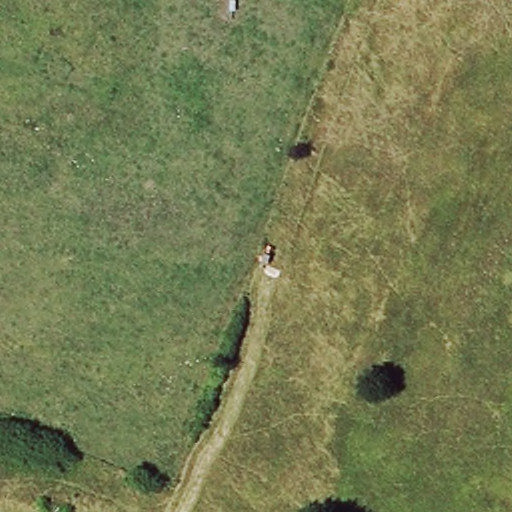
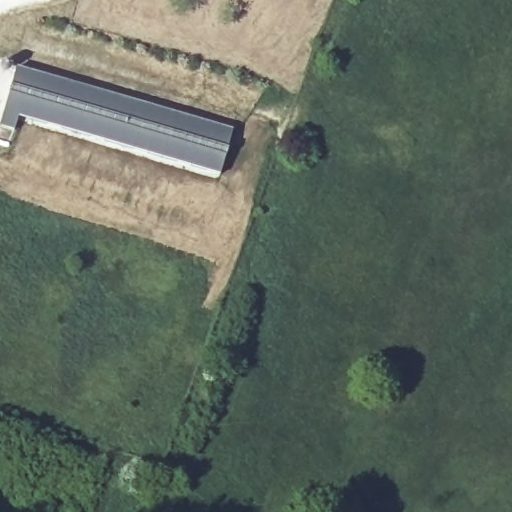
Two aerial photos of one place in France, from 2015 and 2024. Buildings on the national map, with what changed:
new [(219,179),(19,118),(14,133),(0,128),(0,121),(17,67),(234,130),(219,179)]

